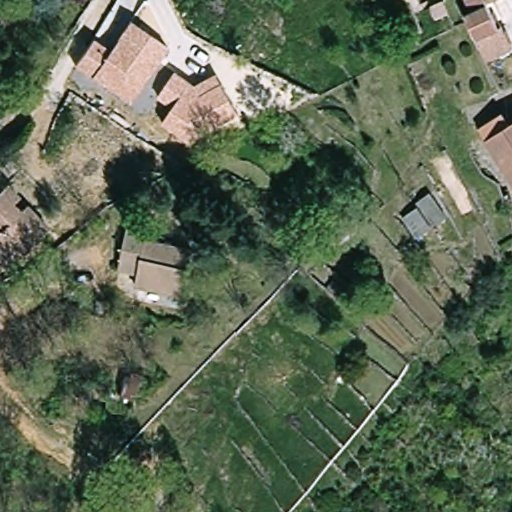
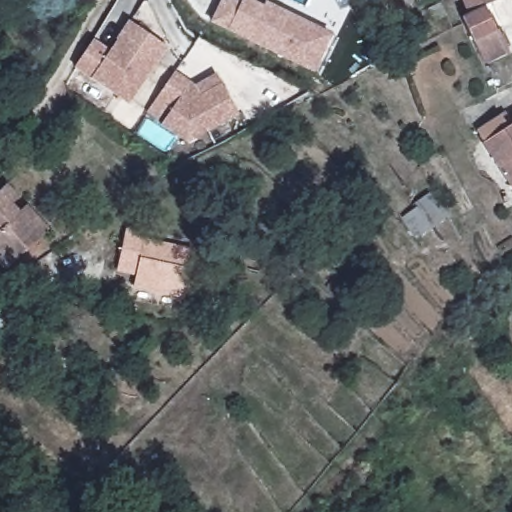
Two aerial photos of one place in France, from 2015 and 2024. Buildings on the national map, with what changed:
new [(223,0),(239,0),(243,2),(244,0),(251,0),(265,7),(266,2),(334,37),(317,73),(213,22),(223,0)]
unchanged [(416,1),(416,0),(420,0),(416,1)]
unchanged [(506,47),(497,51),(481,57),(472,34),(470,34),(461,13),(470,9),(466,0),(493,0),(485,3),(494,25),(496,24),(506,47)]
unchanged [(428,12),(443,5),(450,19),(435,26),(428,12)]
unchanged [(167,48),(130,105),(75,68),(93,39),(111,51),(129,21),(167,48)]
unchanged [(240,115),(188,144),(160,127),(172,110),(157,99),(175,71),(195,85),(216,74),(240,115)]
unchanged [(512,181),(480,138),(505,117),(512,127),(512,181)]
unchanged [(1,180),(16,193),(10,201),(16,207),(23,200),(50,223),(9,268),(0,260),(0,181),(1,180)]
unchanged [(448,215),(416,237),(400,216),(418,204),(415,200),(430,189),(448,215)]
unchanged [(123,257),(128,233),(129,228),(148,232),(146,242),(195,253),(192,269),(186,298),(136,288),(139,274),(120,271),(123,257)]

